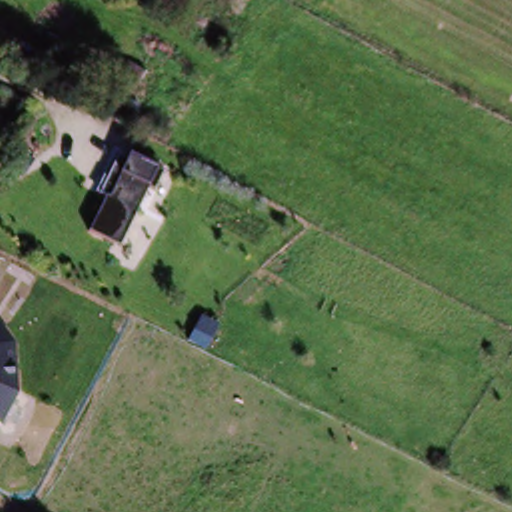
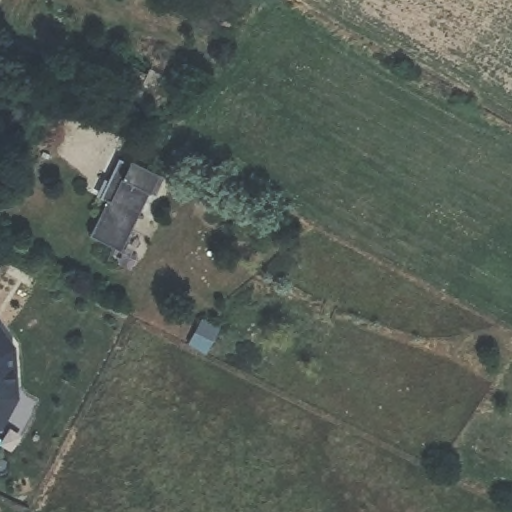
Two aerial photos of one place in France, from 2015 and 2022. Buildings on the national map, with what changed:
unchanged [(89,236),(104,203),(99,200),(112,172),(122,175),(130,158),(157,171),(163,175),(154,195),(147,191),(120,251),(89,236)]
unchanged [(15,346),(17,395),(0,427),(0,329),(15,346)]

